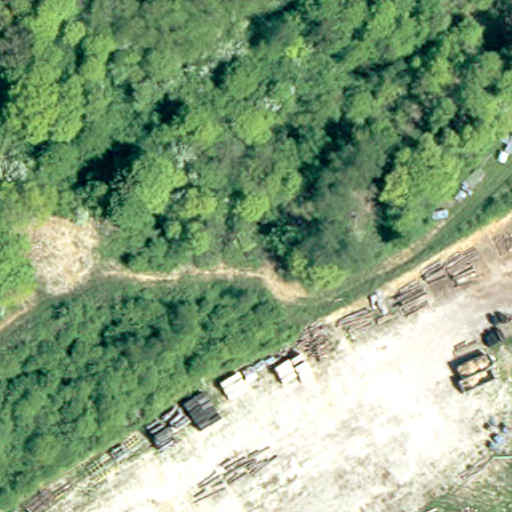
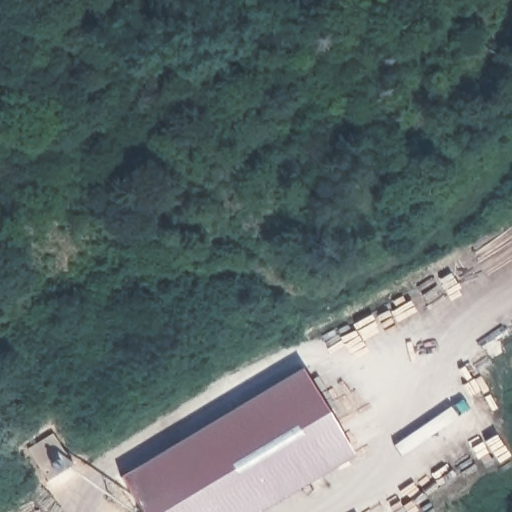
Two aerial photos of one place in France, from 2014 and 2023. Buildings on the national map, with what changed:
new [(301,368),(353,455),(256,512),(142,512),(120,475),(301,368)]
new [(47,480),(28,448),(54,432),(75,466),(47,480)]
demolished [(512,499),(512,512),(486,512),(485,512),(512,499)]

